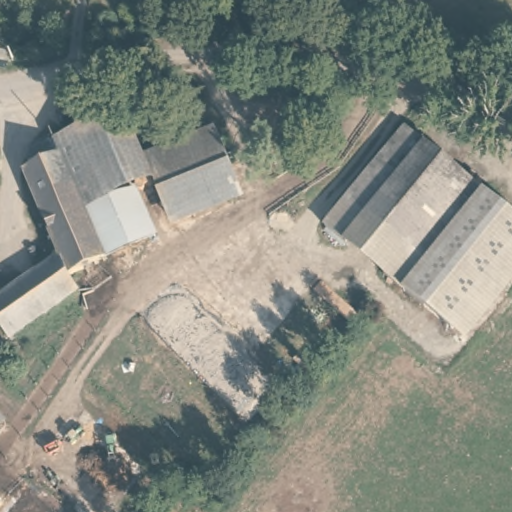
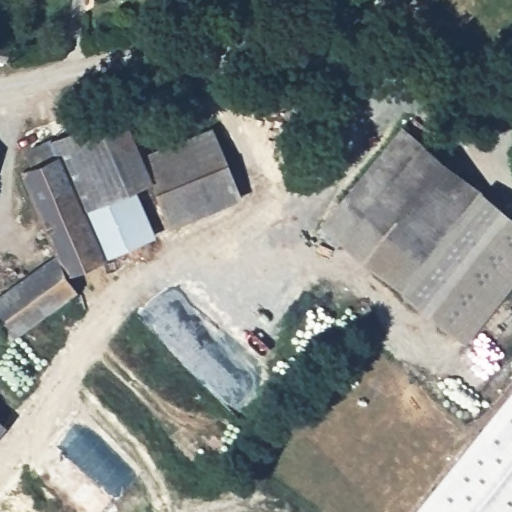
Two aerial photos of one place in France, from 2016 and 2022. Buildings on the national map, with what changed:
unchanged [(8,44),(6,54),(0,53),(0,35),(6,36),(4,44),(8,44)]
unchanged [(124,190),(140,236),(100,255),(49,137),(119,106),(140,156),(150,177),(124,190)]
unchanged [(150,177),(140,156),(214,123),(229,157),(239,180),(166,214),(155,190),(150,177)]
unchanged [(320,226),(400,126),(512,217),(512,282),(461,342),(320,226)]
unchanged [(68,272),(56,247),(19,165),(26,162),(29,157),(26,147),(49,137),(100,255),(68,272)]
unchanged [(0,292),(19,277),(56,247),(68,272),(74,287),(68,292),(40,312),(52,330),(21,351),(8,335),(0,324),(0,292)]
demolished [(40,312),(68,292),(78,308),(52,330),(40,312)]
new [(509,362),(512,359),(512,364),(509,362)]
new [(411,512),(512,388),(512,512),(411,512)]
unchanged [(0,429),(0,423),(3,426),(0,429)]

